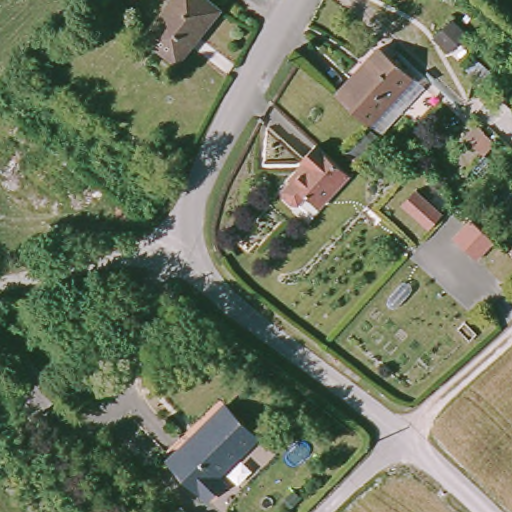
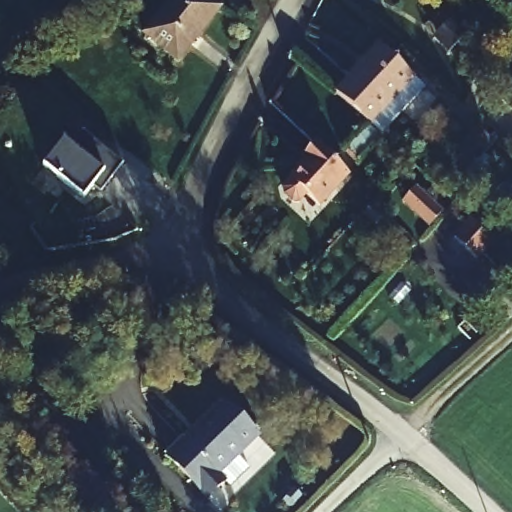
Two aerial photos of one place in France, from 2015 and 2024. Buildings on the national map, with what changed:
unchanged [(111,0),(132,0),(123,11),(111,0)]
unchanged [(205,0),(213,6),(173,61),(143,39),(171,0),(205,0)]
unchanged [(439,31),(453,45),(438,61),(430,55),(436,49),(429,42),(439,31)]
unchanged [(373,46),(417,85),(378,133),(332,95),(373,46)]
new [(83,134),(121,163),(103,187),(84,197),(45,167),(64,142),(71,148),(83,134)]
unchanged [(302,194),(291,203),(279,193),(301,164),(296,158),(308,143),(343,172),(316,206),(302,194)]
unchanged [(437,226),(427,239),(399,216),(410,203),(437,226)]
unchanged [(469,230),(469,229),(492,249),(475,269),(452,249),(469,230)]
unchanged [(14,378),(26,388),(15,401),(1,390),(14,378)]
unchanged [(249,430),(216,473),(223,482),(206,499),(168,463),(216,403),(249,430)]

